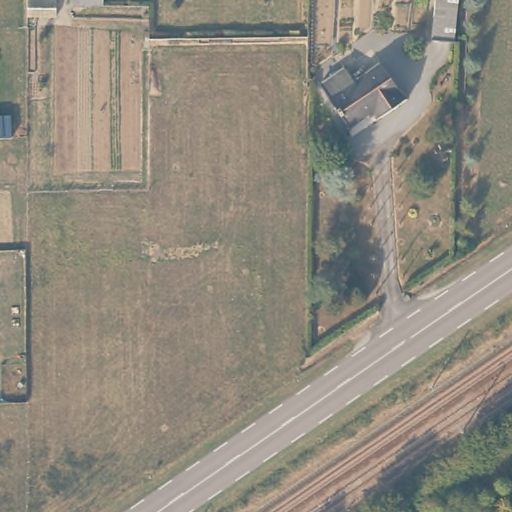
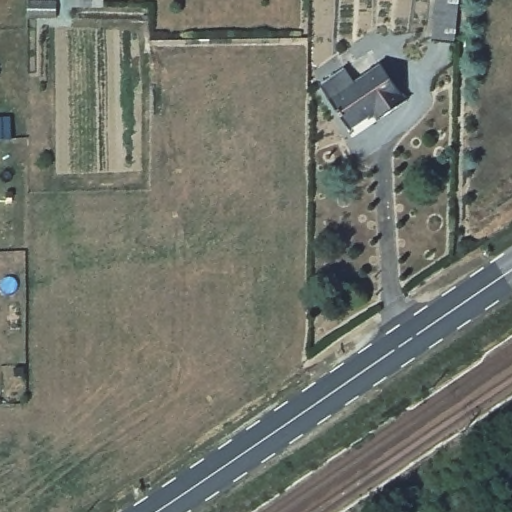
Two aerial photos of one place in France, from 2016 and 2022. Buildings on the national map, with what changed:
unchanged [(456,31),(434,29),(437,0),(459,0),(456,31)]
unchanged [(61,4),(61,19),(33,19),(33,3),(61,4)]
unchanged [(404,97),(374,116),(367,107),(341,123),(314,79),(340,63),(350,78),(379,60),(404,97)]
unchanged [(10,138),(0,138),(0,116),(10,116),(10,138)]

